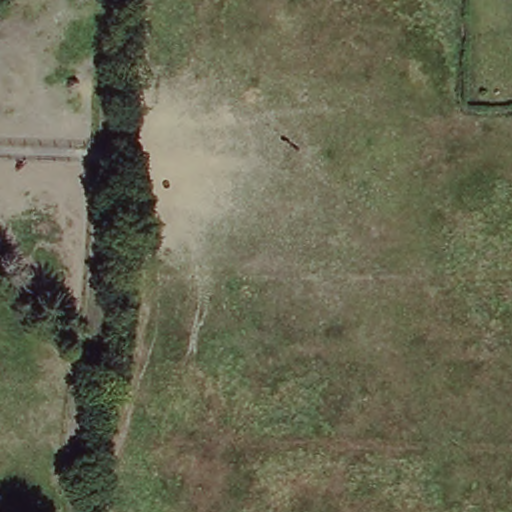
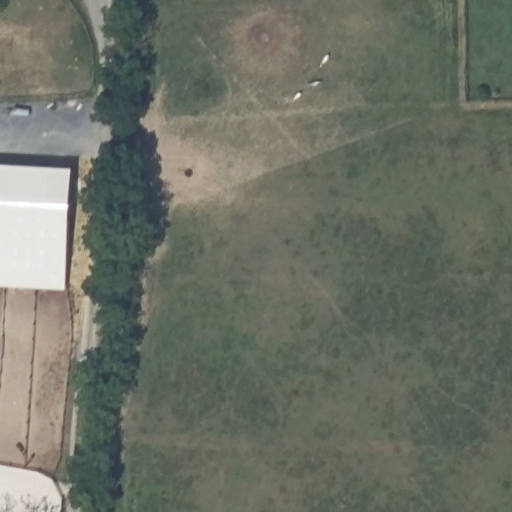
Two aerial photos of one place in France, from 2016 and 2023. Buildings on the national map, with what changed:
new [(68,290),(0,287),(0,167),(75,171),(68,290)]

